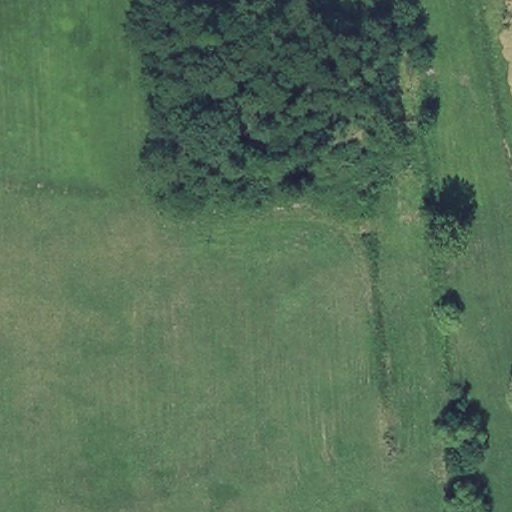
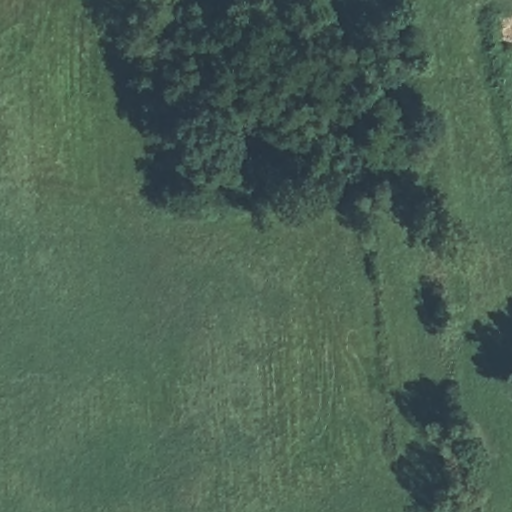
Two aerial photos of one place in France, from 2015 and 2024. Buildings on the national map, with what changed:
[]

